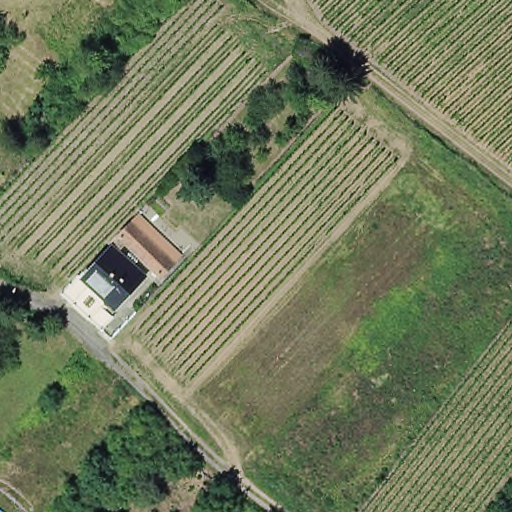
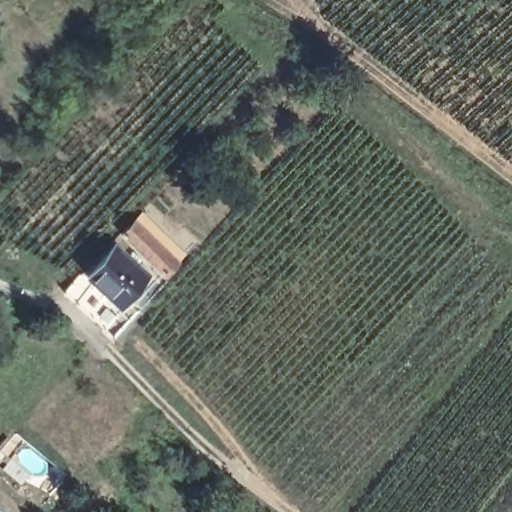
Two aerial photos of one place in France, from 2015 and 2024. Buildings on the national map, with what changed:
unchanged [(200,162),(209,170),(195,185),(187,176),(200,162)]
unchanged [(72,288),(92,267),(97,271),(123,242),(120,240),(130,230),(143,217),(183,256),(171,269),(137,237),(128,246),(137,255),(142,250),(147,255),(142,259),(155,271),(127,302),(118,293),(101,312),(85,298),(72,288)]

